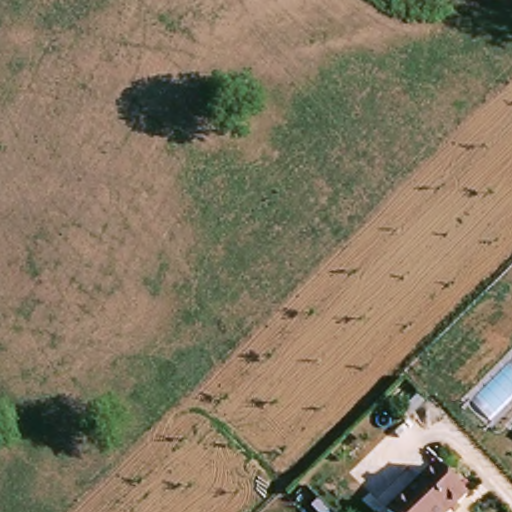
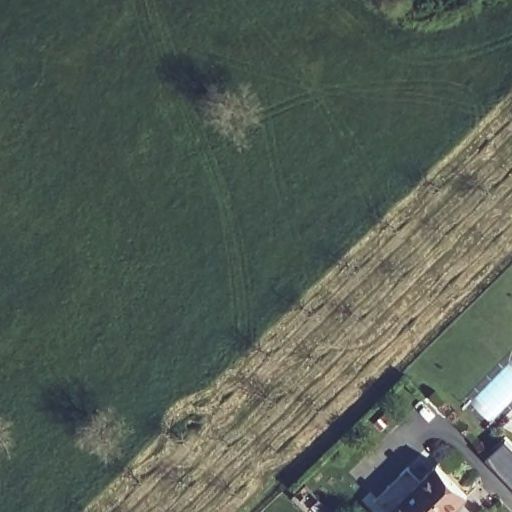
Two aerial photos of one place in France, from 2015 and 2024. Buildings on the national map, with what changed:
new [(506,440),(512,446),(512,485),(487,457),(506,440)]
unchanged [(389,512),(438,463),(468,494),(450,512),(389,512)]

